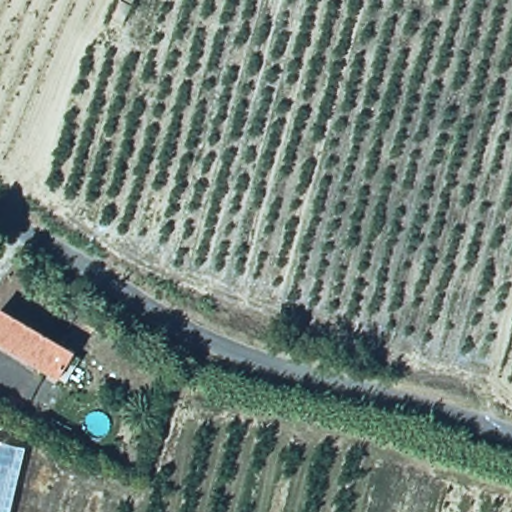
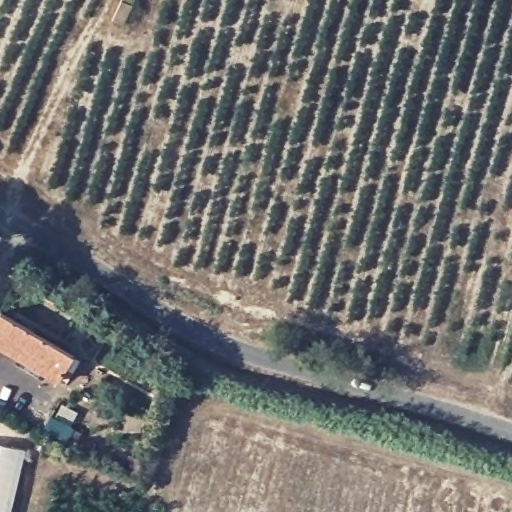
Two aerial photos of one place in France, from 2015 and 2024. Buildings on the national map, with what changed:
unchanged [(58,382),(0,348),(0,313),(73,357),(58,382)]
unchanged [(0,512),(0,444),(24,450),(8,512),(0,512)]

